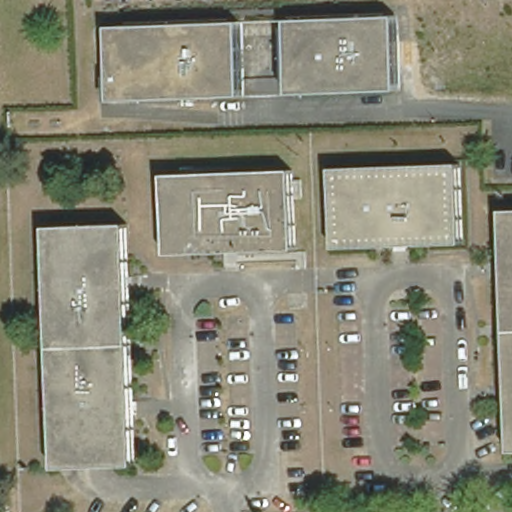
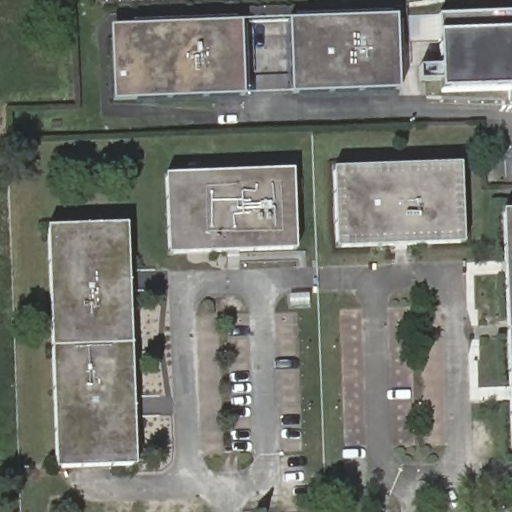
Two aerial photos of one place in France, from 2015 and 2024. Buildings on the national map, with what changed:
new [(507,104),(506,89),(442,90),(437,14),(512,12),(512,105),(507,104)]
unchanged [(402,25),(405,100),(296,104),(293,29),(402,25)]
unchanged [(118,111),(115,49),(128,35),(246,31),(249,106),(118,111)]
unchanged [(336,248),(333,169),(461,164),(464,244),(336,248)]
unchanged [(167,180),(294,175),(298,255),(170,260),(167,180)]
unchanged [(508,360),(503,210),(512,210),(512,360),(508,360)]
unchanged [(49,233),(128,229),(138,472),(113,473),(64,474),(58,474),(49,233)]
unchanged [(512,452),(508,360),(512,360),(512,452)]

